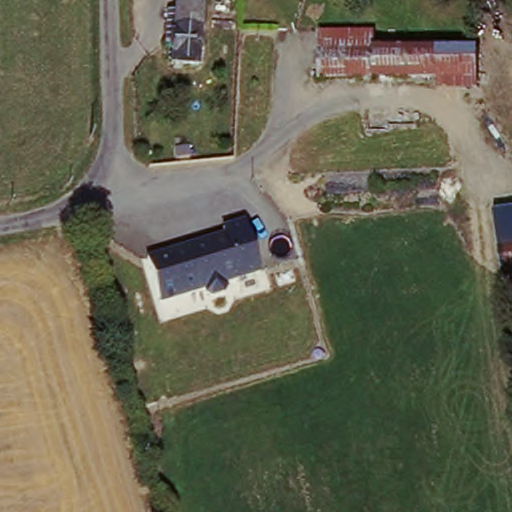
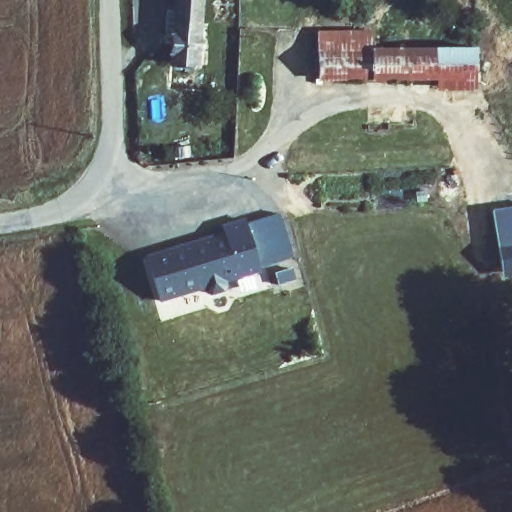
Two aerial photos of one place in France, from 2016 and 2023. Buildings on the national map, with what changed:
unchanged [(206,69),(175,67),(177,62),(178,47),(169,46),(173,12),(180,14),(182,0),(212,0),(206,69)]
unchanged [(438,79),(325,80),(322,37),(377,36),(377,45),(384,45),(384,55),(437,53),(438,79)]
unchanged [(438,79),(437,53),(474,53),(475,92),(439,92),(438,79)]
unchanged [(512,207),(512,270),(504,271),(492,211),(512,207)]
unchanged [(228,240),(226,234),(249,227),(264,277),(228,287),(229,292),(226,296),(214,300),(210,296),(208,292),(163,305),(150,261),(228,240)]

